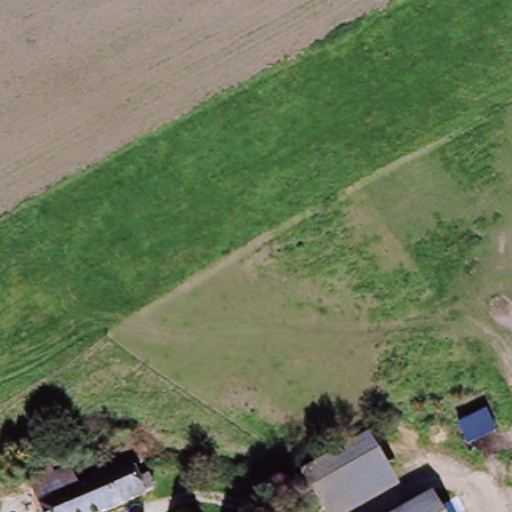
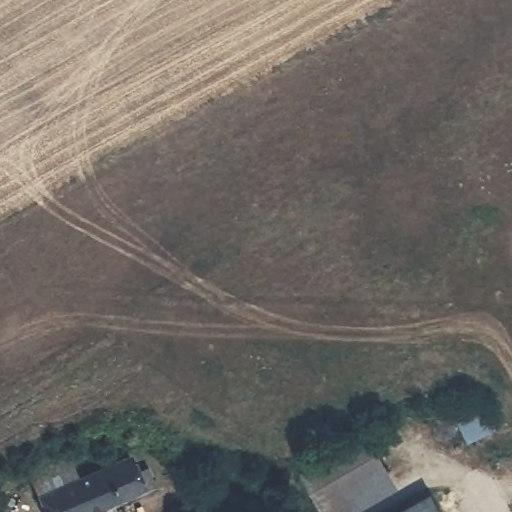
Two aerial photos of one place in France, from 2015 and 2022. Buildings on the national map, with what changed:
unchanged [(301,473),(367,434),(387,470),(322,507),(301,473)]
unchanged [(70,462),(79,481),(126,461),(133,477),(147,471),(152,484),(138,489),(139,491),(92,512),(44,512),(28,479),(70,462)]
unchanged [(430,494),(441,512),(400,512),(430,494)]

